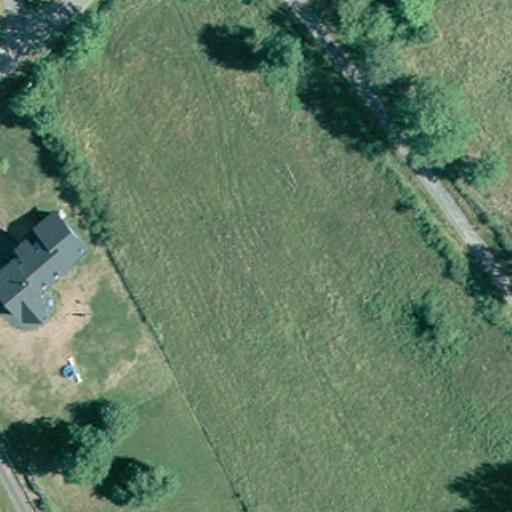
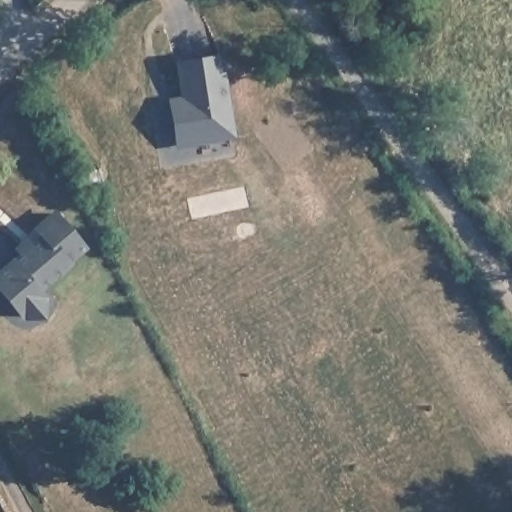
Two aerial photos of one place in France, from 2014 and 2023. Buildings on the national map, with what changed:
new [(224,51),(237,137),(176,148),(168,96),(180,95),(175,60),(224,51)]
unchanged [(37,229),(55,213),(82,247),(36,288),(42,295),(41,304),(32,310),(20,311),(12,307),(0,289),(0,273),(44,236),(37,229)]

